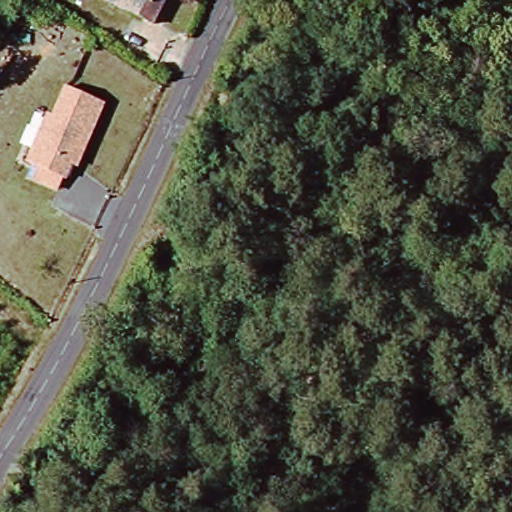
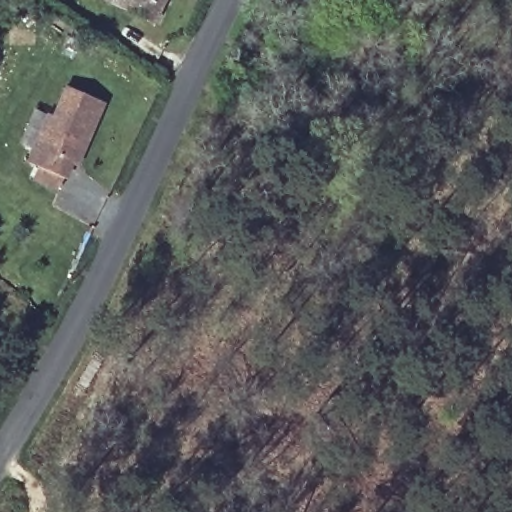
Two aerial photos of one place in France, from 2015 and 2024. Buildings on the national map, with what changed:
unchanged [(162,0),(149,24),(110,2),(111,0),(162,0)]
unchanged [(28,173),(35,163),(25,157),(52,112),(57,115),(73,86),(108,106),(91,134),(72,165),(67,163),(59,178),(52,188),(28,173)]

